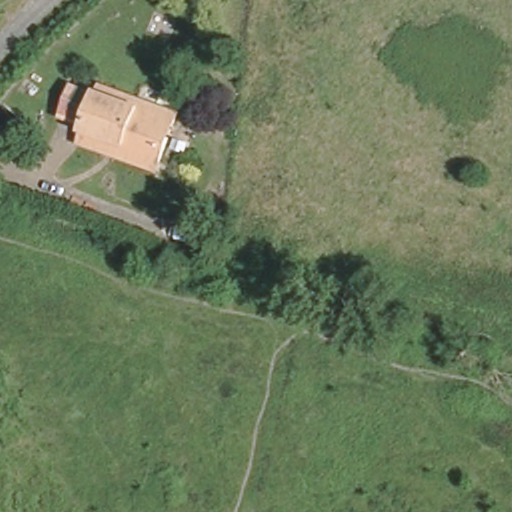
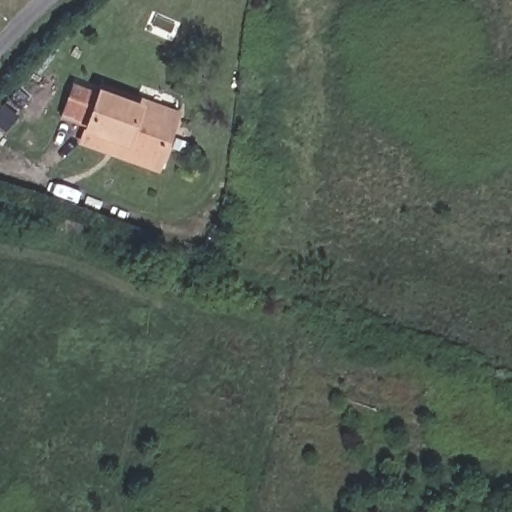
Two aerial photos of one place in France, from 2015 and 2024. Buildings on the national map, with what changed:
unchanged [(86,143),(91,128),(92,126),(62,115),(73,83),(100,93),(104,81),(179,107),(175,119),(161,159),(158,168),(86,143)]

